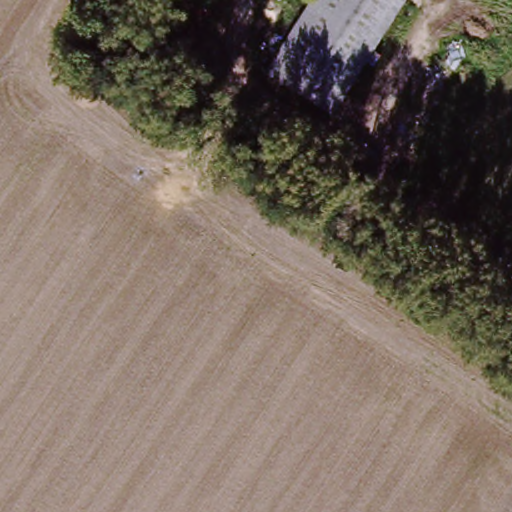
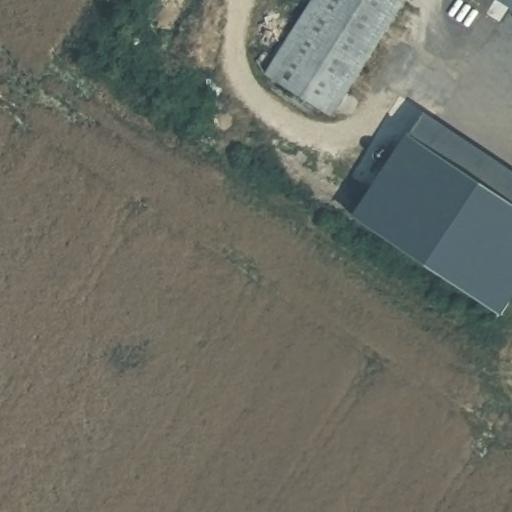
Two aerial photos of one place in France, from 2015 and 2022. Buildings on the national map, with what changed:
unchanged [(325,110),(261,71),(304,0),(394,0),(325,110)]
new [(335,116),(325,110),(394,0),(408,0),(335,116)]
new [(512,7),(502,0),(512,0),(512,7)]
new [(512,303),(503,317),(353,217),(409,132),(411,135),(426,111),(512,169),(512,303)]

